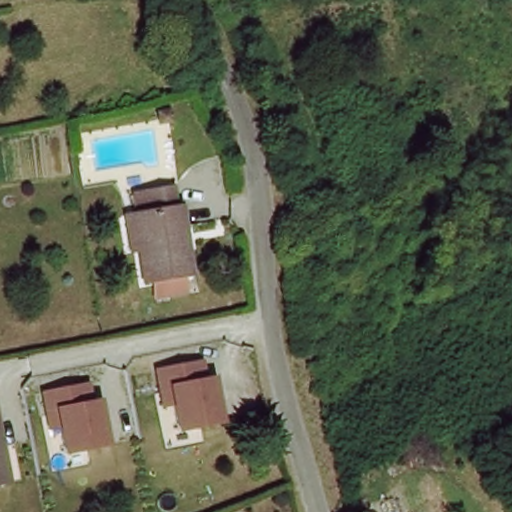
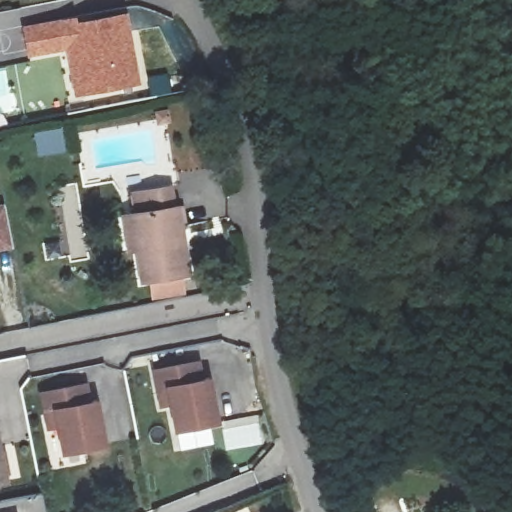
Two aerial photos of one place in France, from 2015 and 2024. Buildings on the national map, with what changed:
new [(67,50),(30,57),(25,30),(74,21),(75,26),(125,16),(138,86),(87,95),(76,97),(67,50)]
unchanged [(145,291),(130,222),(138,221),(134,201),(173,193),(177,212),(192,281),(145,291)]
new [(12,248),(0,251),(0,206),(4,205),(12,248)]
unchanged [(200,357),(203,376),(211,375),(220,419),(179,427),(173,401),(163,403),(155,367),(200,357)]
unchanged [(87,382),(91,400),(98,398),(108,443),(66,452),(61,425),(51,427),(43,391),(87,382)]
unchanged [(0,485),(0,424),(10,482),(0,485)]
unchanged [(42,492),(47,512),(0,512),(0,502),(42,492)]

